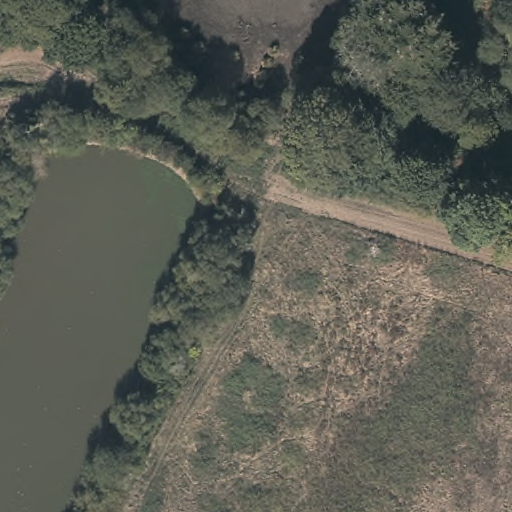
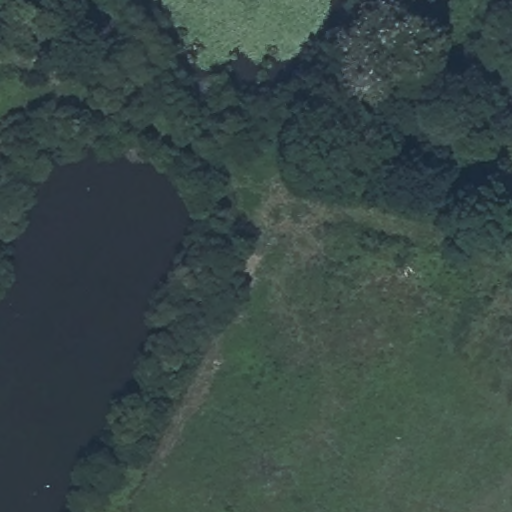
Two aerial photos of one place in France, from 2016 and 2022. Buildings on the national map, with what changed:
[]

